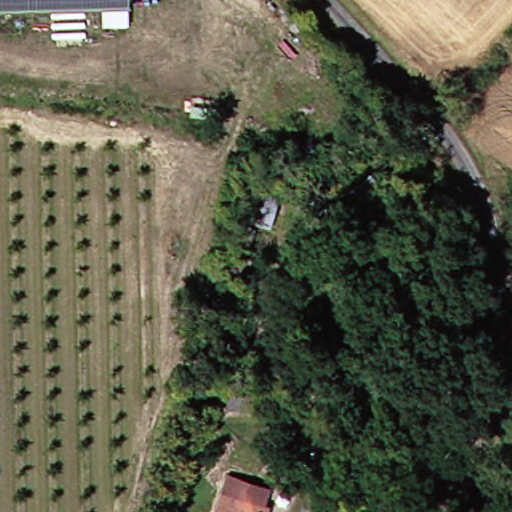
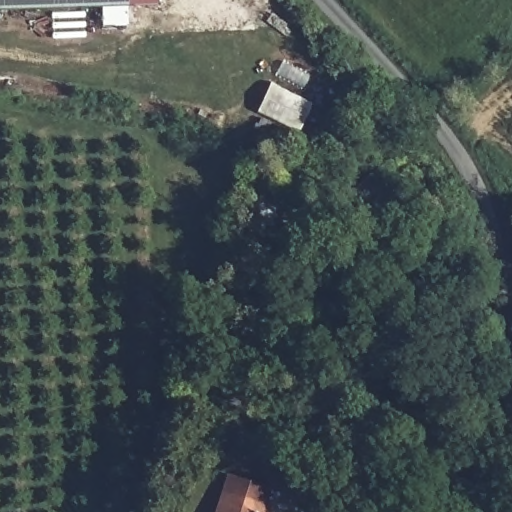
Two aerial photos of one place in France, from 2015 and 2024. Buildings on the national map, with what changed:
unchanged [(0,12),(0,0),(132,0),(132,10),(0,12)]
new [(313,105),(300,131),(260,110),(273,84),(313,105)]
unchanged [(199,371),(227,380),(220,407),(190,399),(199,371)]
unchanged [(230,395),(258,403),(255,416),(227,410),(230,395)]
unchanged [(239,476),(276,487),(271,503),(277,505),(275,512),(228,512),(234,492),(239,476)]

